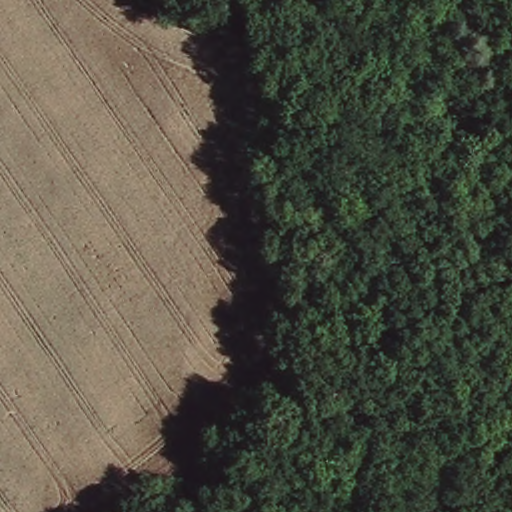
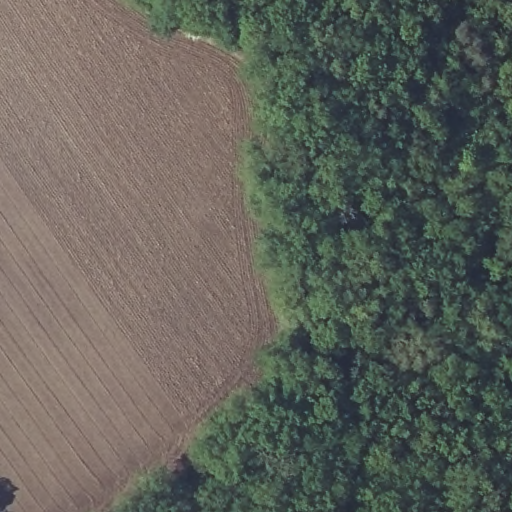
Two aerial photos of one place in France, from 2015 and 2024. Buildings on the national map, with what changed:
unchanged [(332,326),(338,344),(324,348),(319,330),(332,326)]

